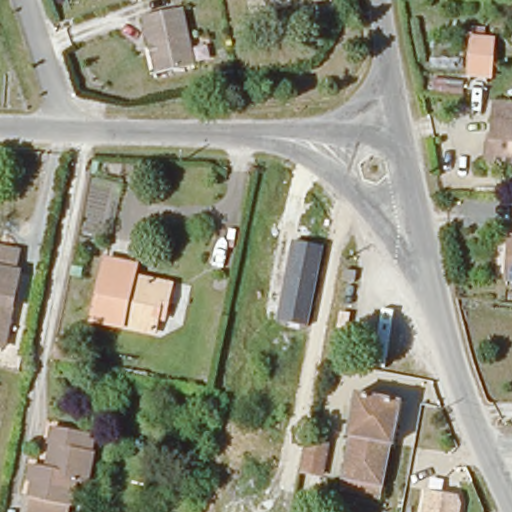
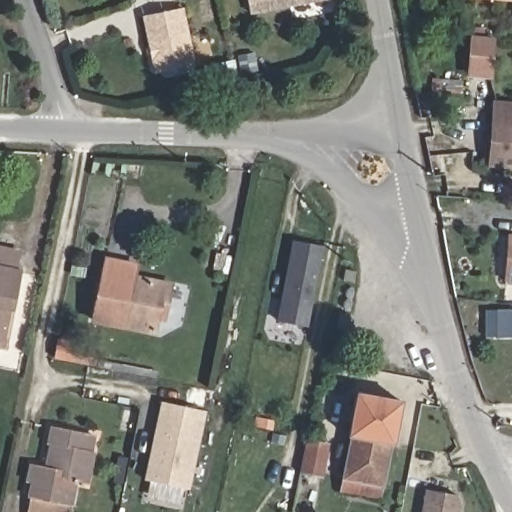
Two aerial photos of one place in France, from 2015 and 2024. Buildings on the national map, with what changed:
unchanged [(251,0),(316,0),(254,14),(251,0)]
unchanged [(197,63),(158,74),(144,17),(179,7),(197,63)]
unchanged [(503,67),(482,66),(485,29),(506,31),(503,67)]
unchanged [(512,166),(489,164),(494,97),(512,99),(512,166)]
unchanged [(512,281),(503,281),(506,235),(512,236),(512,281)]
unchanged [(311,327),(278,321),(293,237),(329,244),(311,327)]
unchanged [(15,249),(10,273),(15,273),(3,347),(0,347),(0,245),(15,249)]
demolished [(360,255),(358,272),(345,271),(347,253),(360,255)]
unchanged [(90,322),(105,257),(137,265),(137,275),(171,283),(165,318),(157,319),(158,337),(90,322)]
unchanged [(340,485),(342,475),(358,385),(400,391),(393,437),(387,437),(380,481),(378,492),(340,485)]
new [(209,412),(191,490),(146,480),(163,402),(209,412)]
unchanged [(33,486),(24,484),(28,462),(47,466),(50,443),(42,442),(44,423),(74,428),(71,447),(90,449),(82,491),(64,487),(59,512),(28,512),(33,486)]
unchanged [(325,447),(320,475),(300,472),(306,442),(325,447)]
unchanged [(462,505),(461,512),(418,512),(421,488),(431,490),(433,475),(442,476),(442,491),(460,494),(462,505)]

